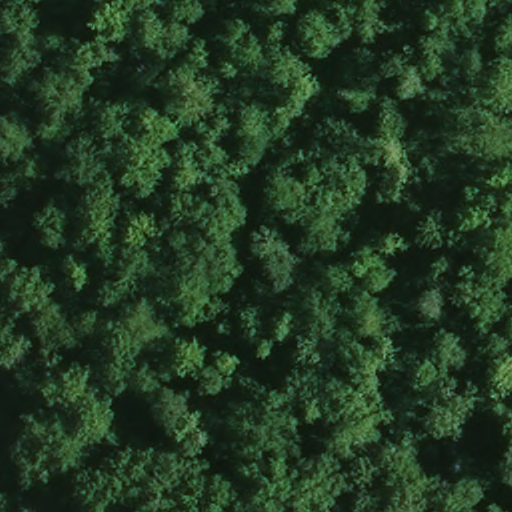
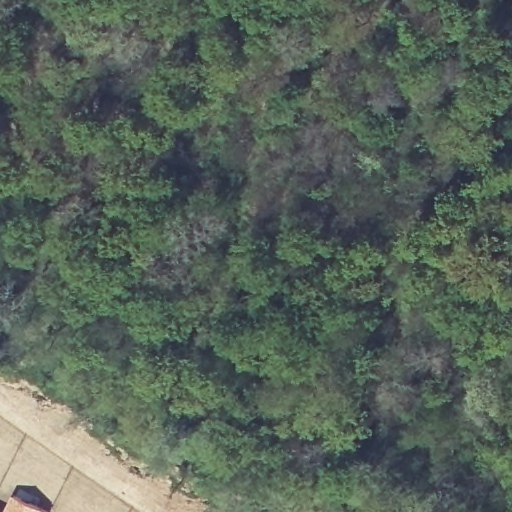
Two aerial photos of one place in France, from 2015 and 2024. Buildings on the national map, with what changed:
new [(5,510),(13,494),(50,511),(50,512),(5,512),(5,510)]
new [(5,510),(5,512),(0,512),(0,507),(5,510)]

